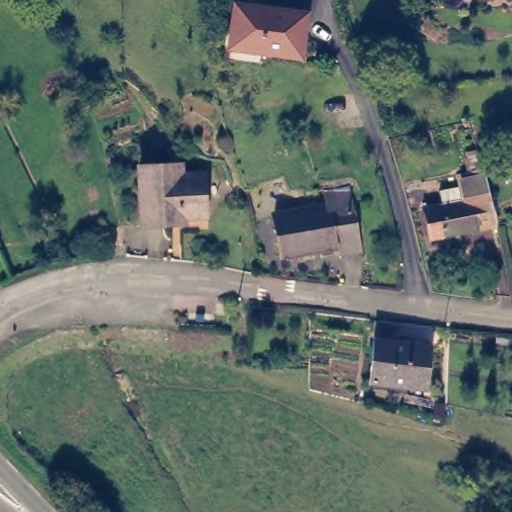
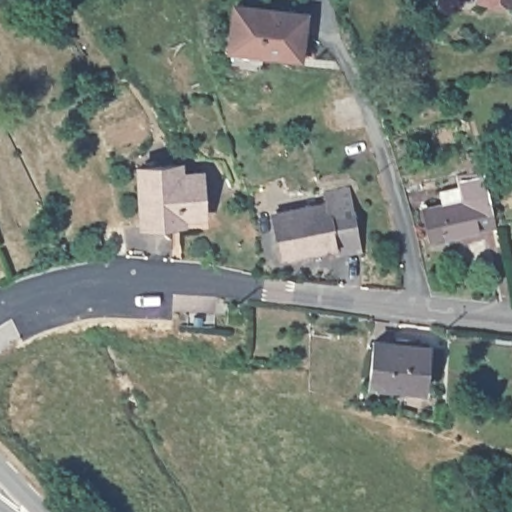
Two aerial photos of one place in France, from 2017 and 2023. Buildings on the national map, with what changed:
unchanged [(235,39),(240,0),(311,10),(305,52),(265,46),(234,42),(235,39)]
unchanged [(176,165),(177,176),(196,176),(195,214),(161,215),(161,225),(135,224),(136,165),(139,165),(176,165)]
unchanged [(435,241),(429,211),(447,206),(446,194),(469,187),(467,176),(491,170),(495,186),(502,228),(435,241)]
unchanged [(356,194),(362,242),(338,247),(337,240),(285,250),(279,208),(356,194)]
unchanged [(425,334),(426,378),(369,377),(367,332),(425,334)]

